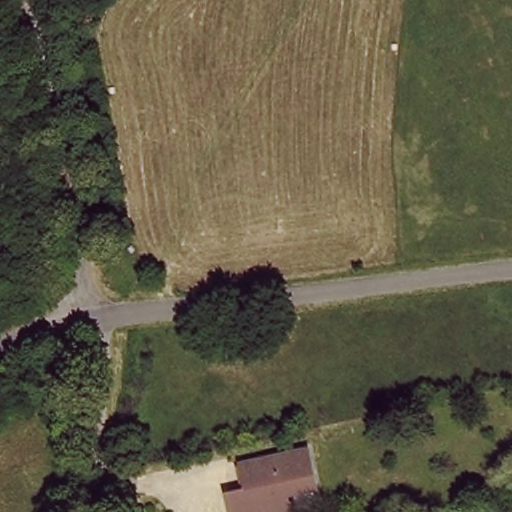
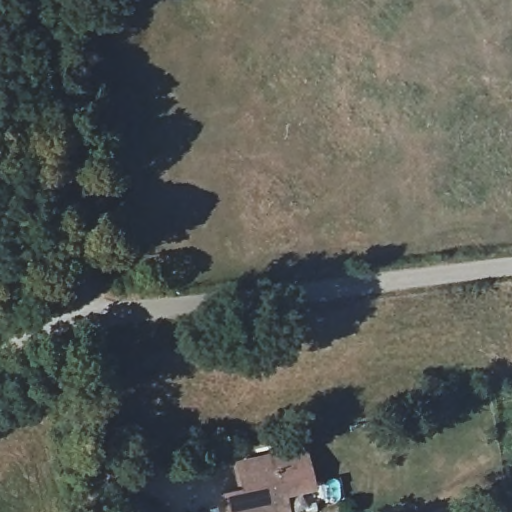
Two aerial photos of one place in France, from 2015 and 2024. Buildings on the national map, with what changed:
unchanged [(302,444),(312,483),(284,490),(288,512),(226,512),(221,490),(243,485),(237,458),(302,444)]

